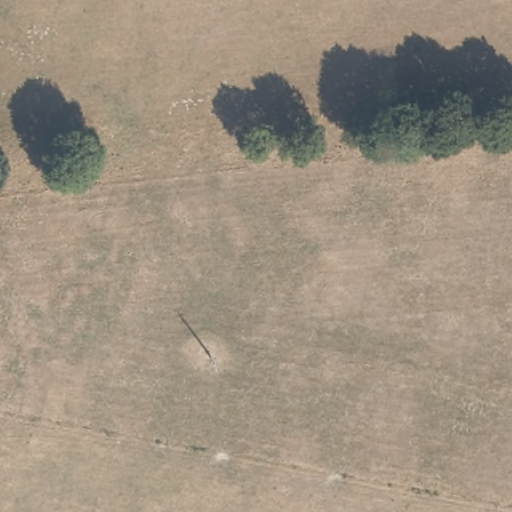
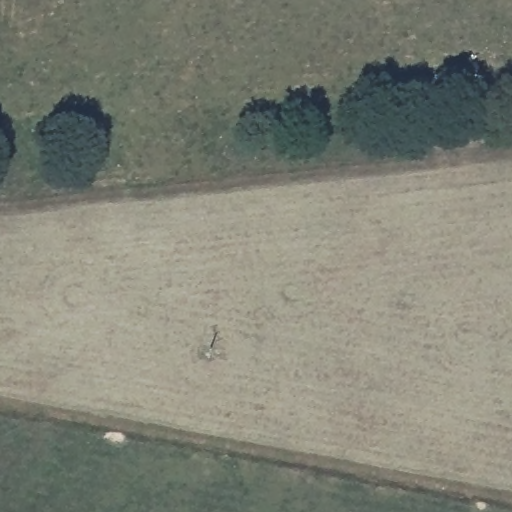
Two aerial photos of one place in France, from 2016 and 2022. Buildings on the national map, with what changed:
[]

